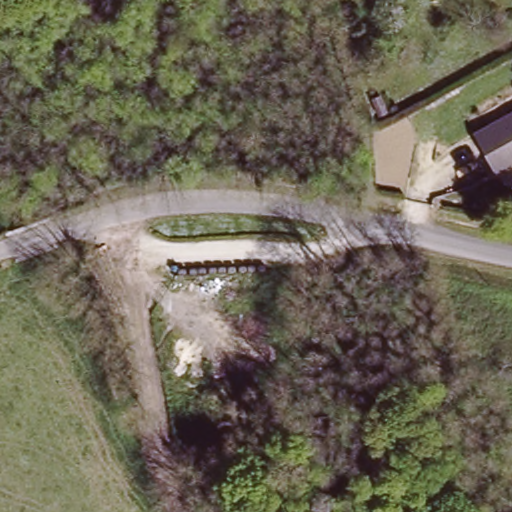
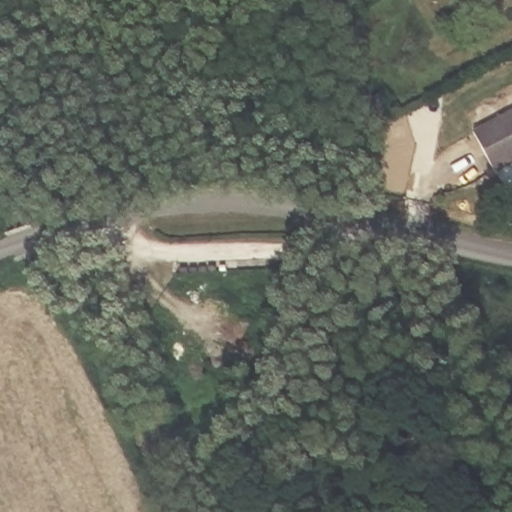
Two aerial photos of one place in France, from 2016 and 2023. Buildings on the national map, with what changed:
unchanged [(384,97),(390,112),(381,116),(375,100),(384,97)]
unchanged [(512,159),(490,172),(469,134),(512,110),(512,159)]

